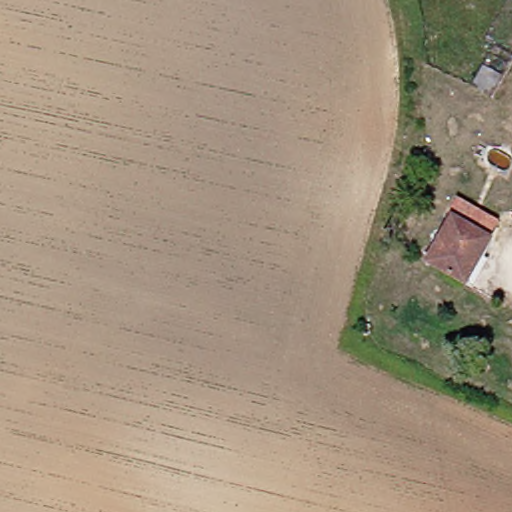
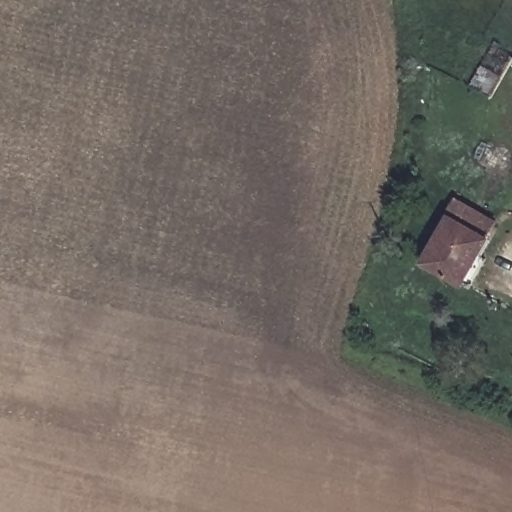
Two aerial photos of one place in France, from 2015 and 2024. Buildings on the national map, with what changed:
unchanged [(487,242),(462,287),(422,265),(448,219),(487,242)]

